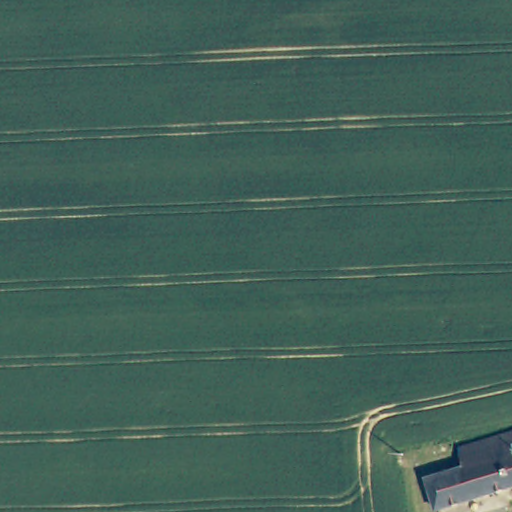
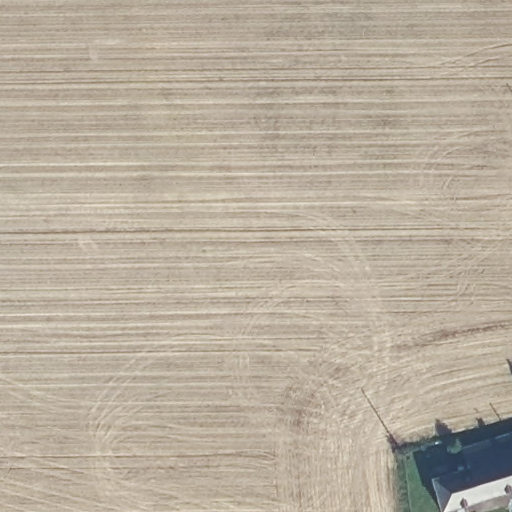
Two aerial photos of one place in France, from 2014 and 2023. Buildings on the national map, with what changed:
unchanged [(431,475),(461,463),(456,451),(512,434),(512,485),(442,507),(431,475)]

